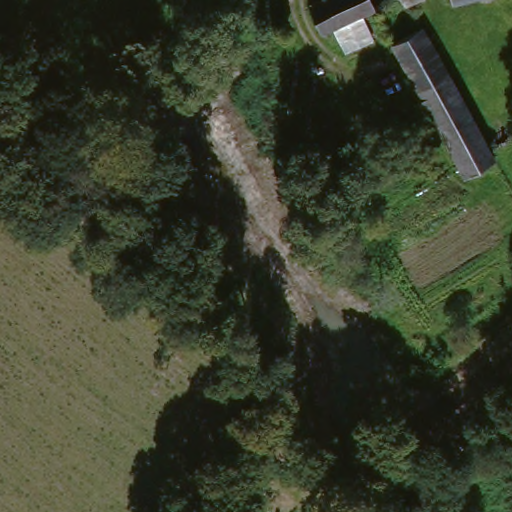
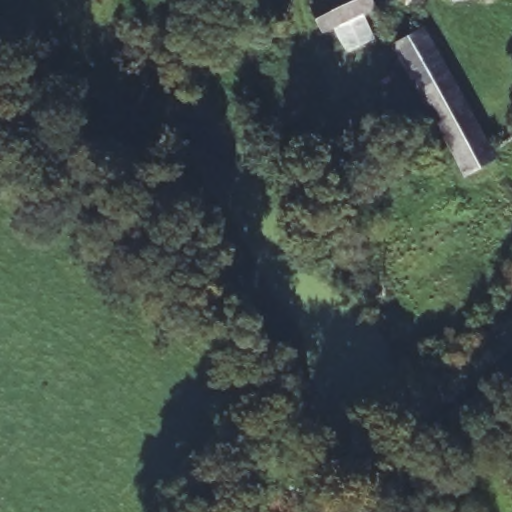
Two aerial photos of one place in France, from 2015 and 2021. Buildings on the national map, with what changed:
unchanged [(307,11),(329,0),(365,0),(371,11),(318,37),(307,11)]
unchanged [(405,6),(404,6),(402,0),(419,0),(408,5),(405,6)]
unchanged [(448,0),(473,0),(449,5),(448,0)]
unchanged [(394,40),(419,28),(488,156),(491,161),(464,175),(431,111),(394,40)]

